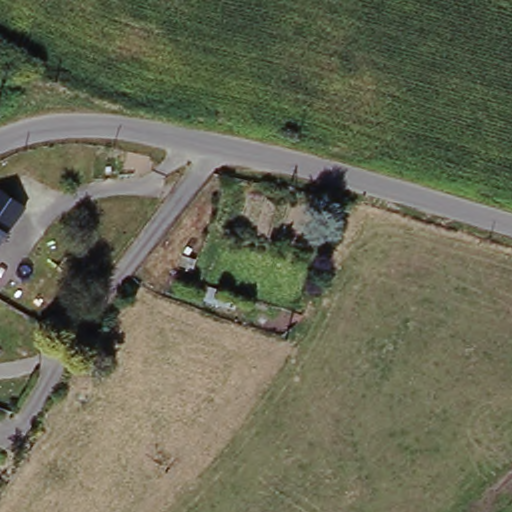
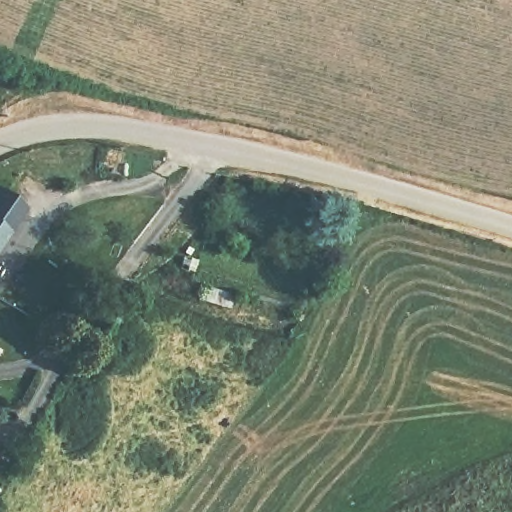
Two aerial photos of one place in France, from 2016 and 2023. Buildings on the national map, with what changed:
unchanged [(5,203),(37,225),(21,249),(0,235),(0,211),(5,203)]
unchanged [(0,277),(0,235),(21,249),(0,277)]

